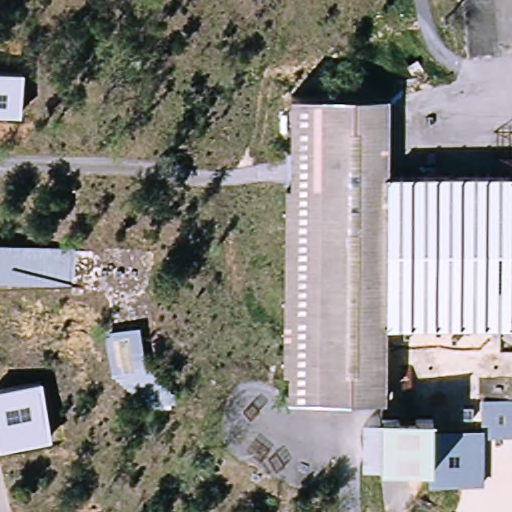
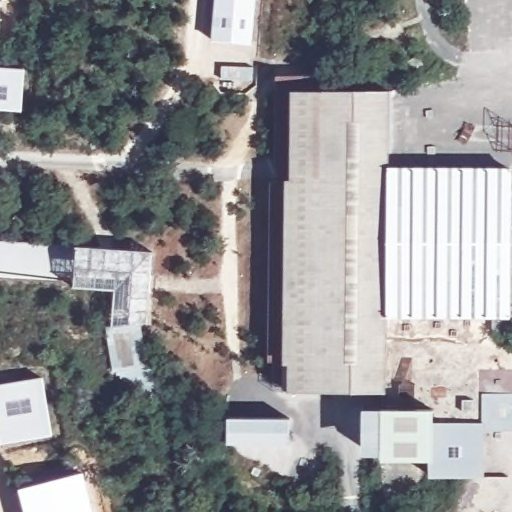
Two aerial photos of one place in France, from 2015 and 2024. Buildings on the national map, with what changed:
new [(0,0),(1,0),(0,13),(0,0)]
new [(211,40),(215,0),(256,0),(252,43),(211,40)]
demolished [(471,0),(507,0),(511,62),(477,60),(471,0)]
unchanged [(0,66),(23,67),(22,107),(0,106),(0,66)]
unchanged [(384,393),(319,393),(321,94),(386,93),(386,170),(385,320),(384,393)]
unchanged [(291,182),(290,94),(321,94),(319,393),(290,393),(289,364),(285,363),(286,183),(291,182)]
unchanged [(386,170),(510,171),(509,320),(385,320),(386,170)]
unchanged [(76,283),(0,279),(0,240),(78,244),(76,283)]
new [(153,251),(146,324),(141,324),(141,321),(112,324),(115,291),(74,287),(75,283),(76,283),(78,247),(153,251)]
unchanged [(141,321),(142,360),(180,398),(154,415),(111,371),(104,325),(141,321)]
unchanged [(50,431),(0,439),(0,383),(41,376),(50,431)]
unchanged [(435,462),(387,462),(387,411),(438,411),(438,426),(488,426),(488,478),(436,477),(435,462)]
new [(289,443),(225,442),(226,418),(288,419),(289,443)]
new [(94,512),(25,512),(19,488),(83,472),(94,512)]

